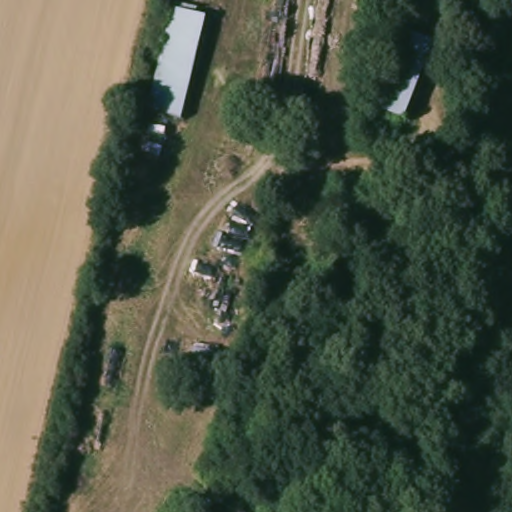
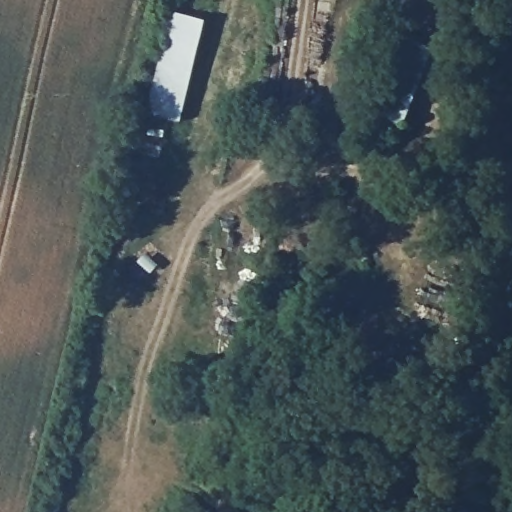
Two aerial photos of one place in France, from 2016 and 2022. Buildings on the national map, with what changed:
unchanged [(148,112),(175,6),(211,16),(184,120),(148,112)]
unchanged [(365,111),(399,31),(441,46),(407,126),(365,111)]

